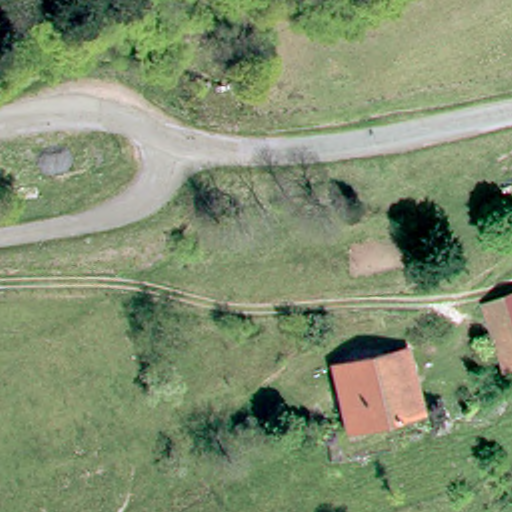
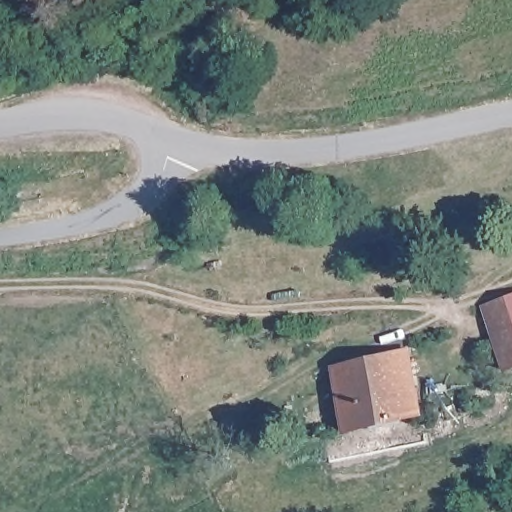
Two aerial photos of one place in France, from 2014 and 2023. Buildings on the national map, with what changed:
unchanged [(512,303),(512,377),(506,379),(482,315),(512,303)]
unchanged [(409,353),(422,412),(349,430),(336,373),(336,371),(409,353)]

